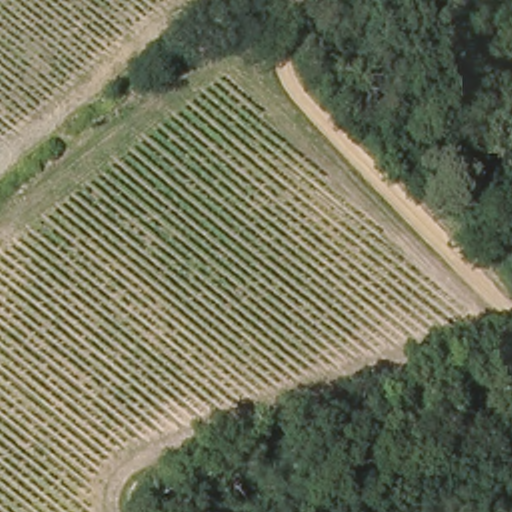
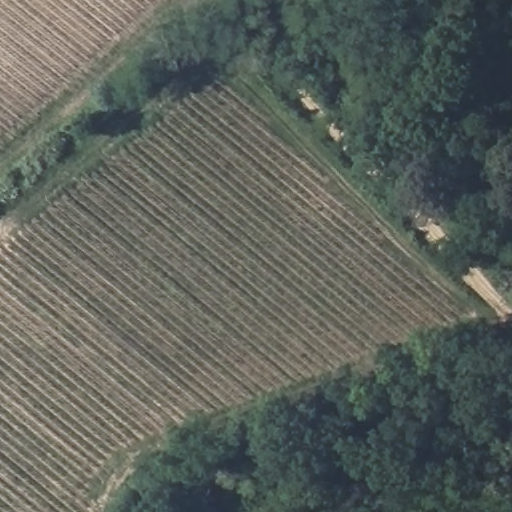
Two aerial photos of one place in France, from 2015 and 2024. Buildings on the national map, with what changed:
unchanged [(246,24),(261,40),(247,51),(234,34),(246,24)]

